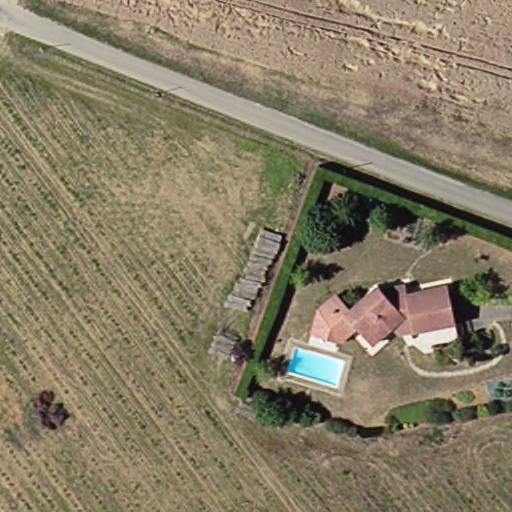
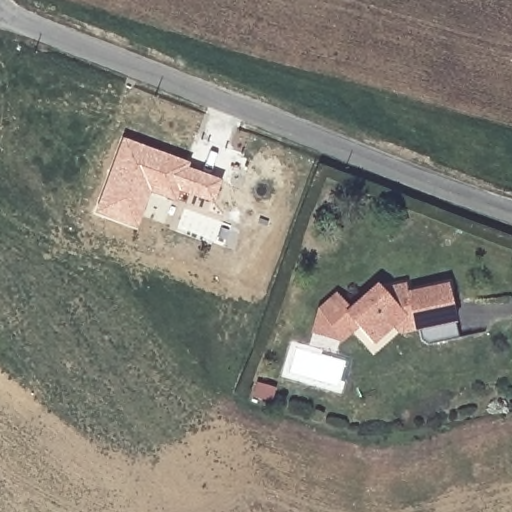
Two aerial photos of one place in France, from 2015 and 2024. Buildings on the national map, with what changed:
new [(187,168),(222,181),(211,204),(179,192),(175,203),(151,193),(137,230),(95,214),(122,138),(190,164),(187,168)]
unchanged [(394,322),(368,344),(353,327),(342,314),(345,310),(372,285),(378,290),(402,285),(405,294),(447,287),(453,323),(414,330),(396,333),(394,322)]
unchanged [(331,295),(345,310),(342,314),(353,327),(337,342),(308,334),(314,311),(331,295)]

